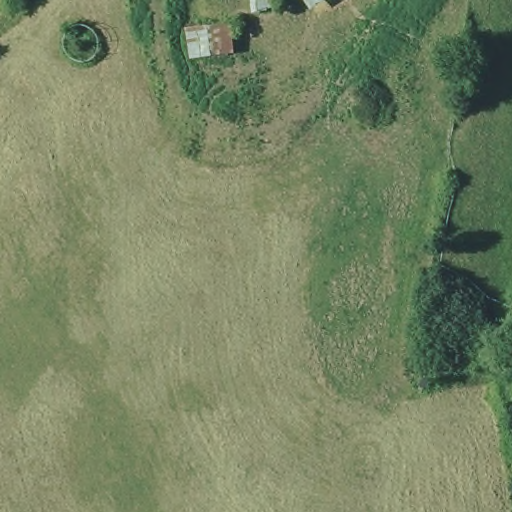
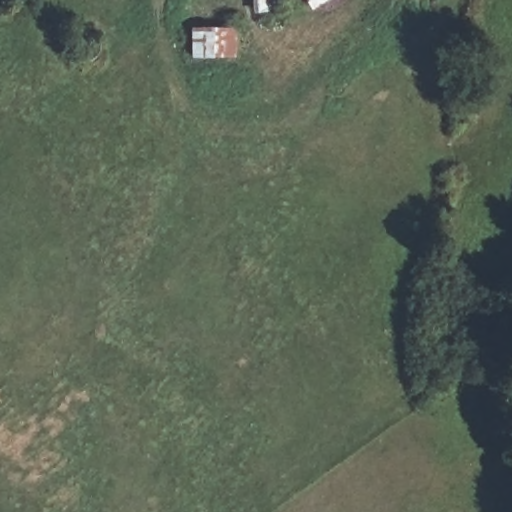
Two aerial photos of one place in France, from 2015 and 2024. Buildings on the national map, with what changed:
unchanged [(270,13),(247,15),(246,0),(270,0),(270,13)]
unchanged [(310,12),(301,0),(328,0),(310,12)]
unchanged [(240,53),(188,59),(187,24),(237,20),(240,53)]

